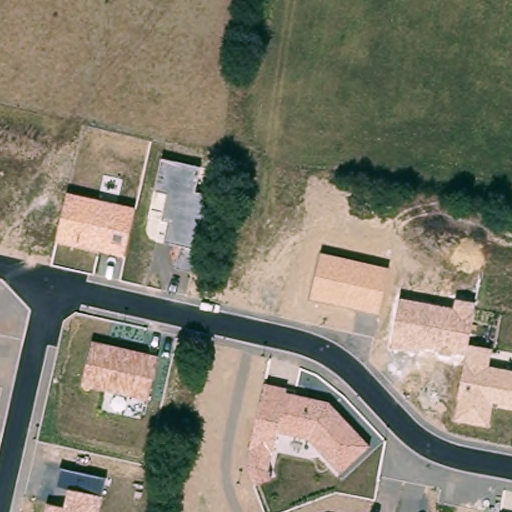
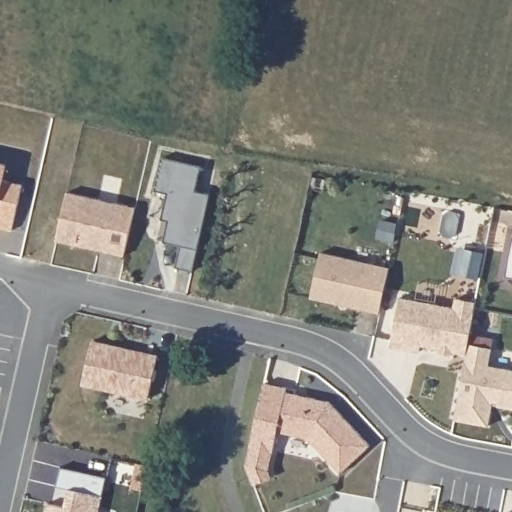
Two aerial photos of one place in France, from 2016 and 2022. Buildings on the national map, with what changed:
unchanged [(161,158),(201,167),(196,192),(211,195),(201,249),(194,272),(176,267),(181,247),(156,241),(161,219),(148,217),(161,158)]
new [(0,228),(0,161),(6,163),(2,181),(20,184),(12,231),(0,228)]
unchanged [(67,193),(136,209),(125,256),(57,241),(67,193)]
new [(505,278),(512,237),(512,279),(505,278)]
unchanged [(321,253),(389,269),(380,313),(311,299),(321,253)]
unchanged [(400,299),(452,308),(455,300),(477,304),(468,346),(492,350),(489,366),(512,370),(512,409),(492,406),(490,427),(453,421),(466,355),(453,353),(452,357),(436,355),(437,350),(421,346),(420,353),(392,347),(400,299)]
unchanged [(91,341),(158,356),(149,399),(82,386),(91,341)]
unchanged [(247,467),(263,384),(288,389),(288,394),(331,403),(368,445),(338,473),(308,438),(276,432),(269,469),(273,479),(255,485),(247,467)]
unchanged [(64,507),(68,489),(57,487),(62,468),(106,478),(102,497),(99,512),(45,512),(47,503),(64,507)]

